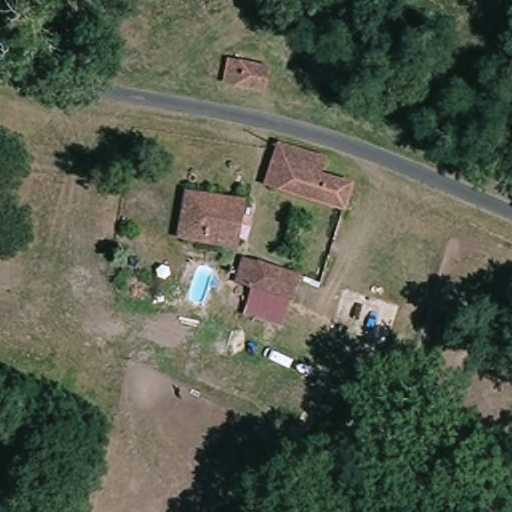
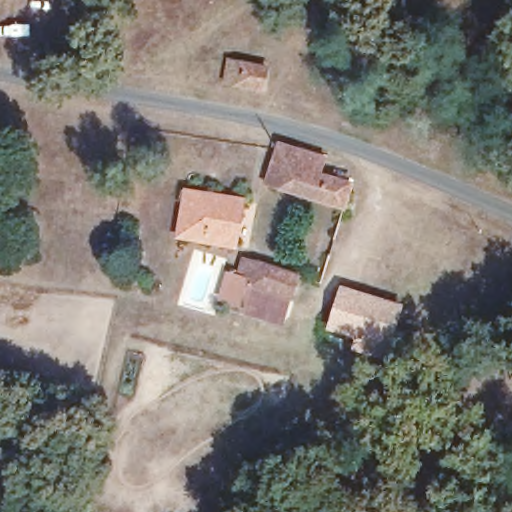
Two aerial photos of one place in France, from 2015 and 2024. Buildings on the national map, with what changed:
unchanged [(266,88),(242,83),(229,80),(233,59),(246,62),(271,66),(266,88)]
unchanged [(325,168),(346,173),(341,205),(314,199),(268,188),(274,140),(327,152),(325,168)]
unchanged [(247,199),(238,245),(178,232),(187,186),(247,199)]
unchanged [(293,297),(292,306),(239,298),(241,270),(232,268),(235,248),(301,262),(293,297)]
new [(340,284),(401,303),(388,345),(384,358),(359,350),(353,346),(356,337),(326,328),(340,284)]

